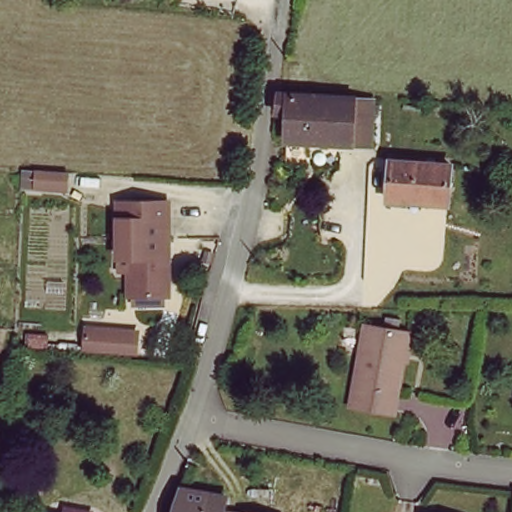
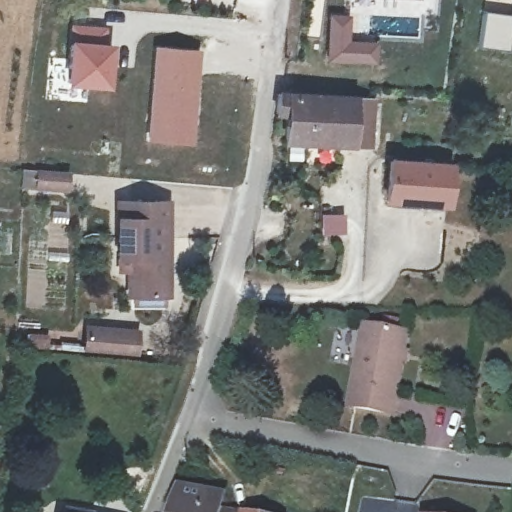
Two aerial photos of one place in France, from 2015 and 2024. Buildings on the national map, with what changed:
new [(482,10),(512,14),(512,18),(507,51),(477,47),(482,10)]
new [(328,14),(352,15),(350,39),(380,41),(378,64),(326,63),(328,14)]
new [(512,18),(512,51),(507,51),(512,18)]
new [(69,24),(109,26),(109,88),(67,85),(69,24)]
new [(153,45),(202,50),(196,147),(146,143),(153,45)]
unchanged [(363,152),(277,149),(279,120),(267,120),(270,98),(365,103),(363,152)]
unchanged [(390,201),(394,161),(452,164),(448,204),(390,201)]
unchanged [(43,185),(28,184),(29,167),(32,168),(44,169),(55,170),(74,172),(73,188),(43,185)]
unchanged [(140,307),(140,299),(137,299),(137,274),(126,273),(126,213),(126,206),(138,206),(172,206),(174,299),(170,299),(170,306),(140,307)]
unchanged [(85,352),(87,328),(137,332),(136,356),(119,354),(111,354),(85,352)]
unchanged [(393,421),(349,412),(363,331),(407,339),(393,421)]
unchanged [(226,502),(224,512),(195,512),(197,497),(226,502)]
unchanged [(175,512),(173,512),(173,511),(175,512)]

